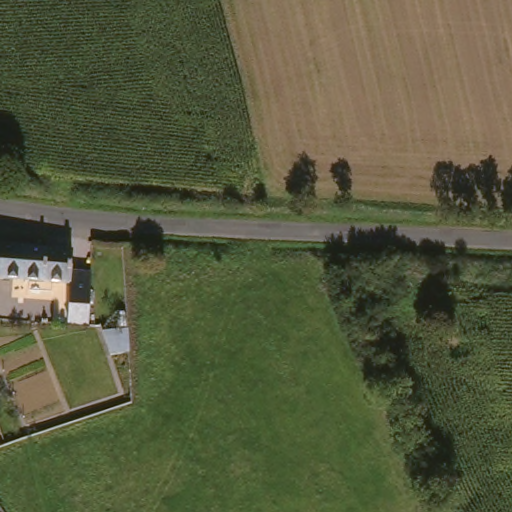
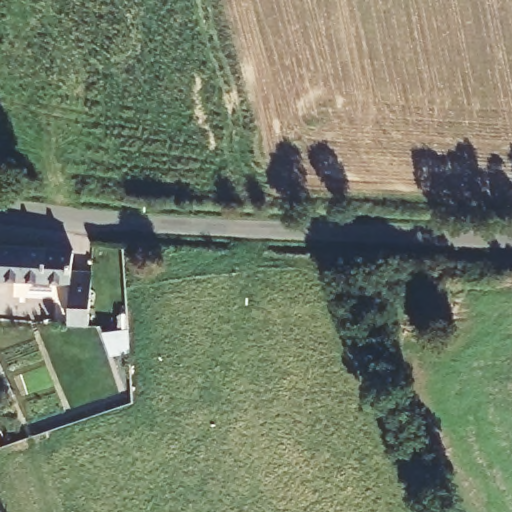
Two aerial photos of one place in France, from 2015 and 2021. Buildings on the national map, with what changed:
unchanged [(75,291),(76,281),(0,277),(0,248),(20,249),(66,252),(69,252),(70,248),(77,249),(76,270),(97,271),(96,292),(94,324),(74,322),(75,291)]
unchanged [(114,323),(139,321),(146,341),(121,347),(114,323)]
unchanged [(0,436),(0,416),(9,412),(17,429),(0,436)]

